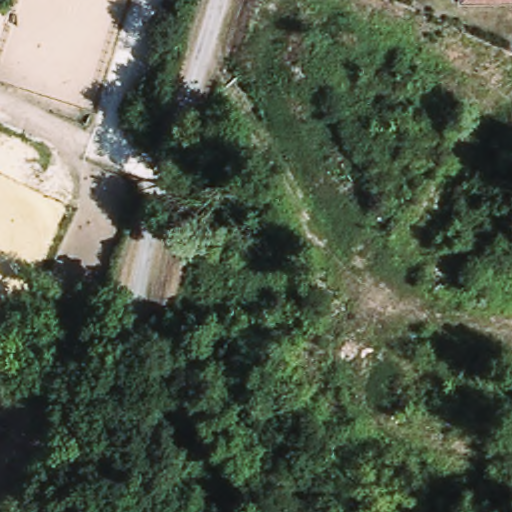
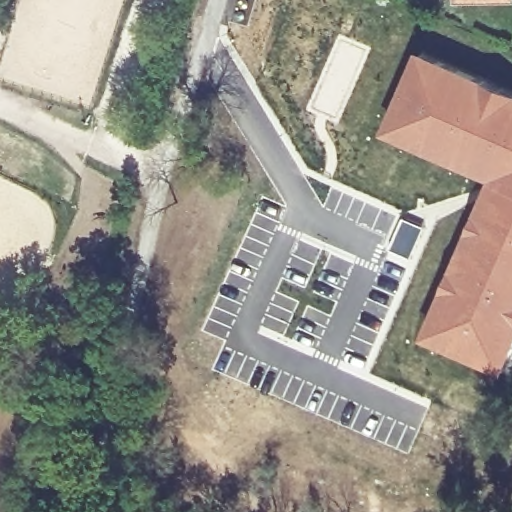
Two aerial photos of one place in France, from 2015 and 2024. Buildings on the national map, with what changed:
unchanged [(468,0),(512,0),(512,3),(468,3),(468,0)]
new [(473,71),(512,89),(512,363),(507,374),(422,339),(491,182),(384,133),(420,50),(473,71)]
new [(403,216),(426,227),(410,260),(389,249),(403,216)]

